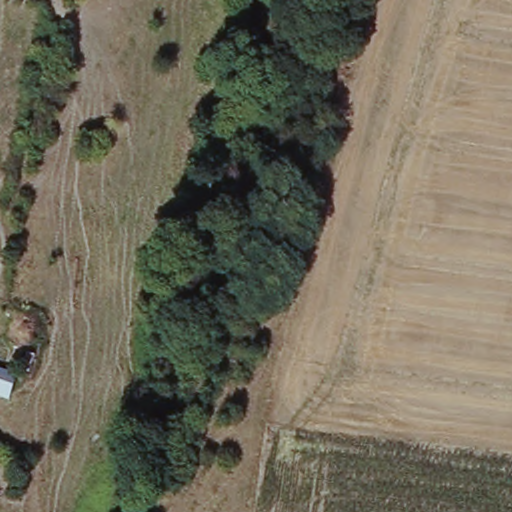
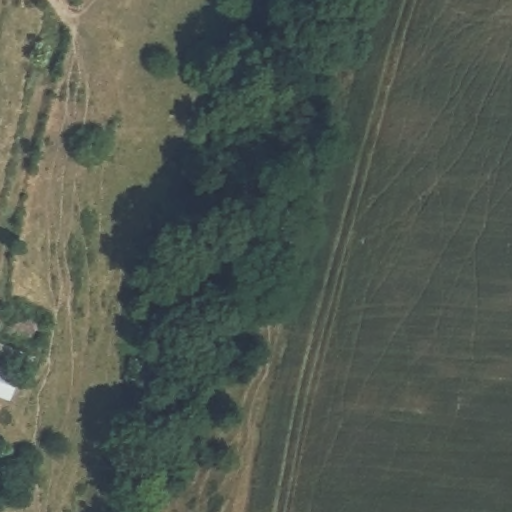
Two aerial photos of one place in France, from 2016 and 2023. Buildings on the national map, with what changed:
unchanged [(11,398),(0,395),(0,374),(16,377),(11,398)]
unchanged [(0,470),(0,448),(11,461),(0,470)]

